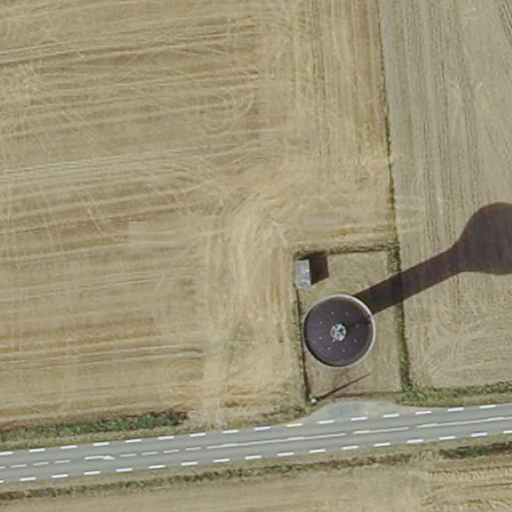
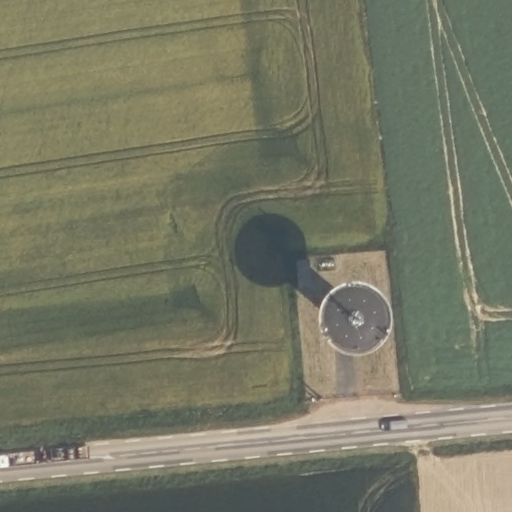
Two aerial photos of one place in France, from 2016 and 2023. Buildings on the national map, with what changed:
unchanged [(296,245),(297,272),(282,274),(281,247),(296,245)]

